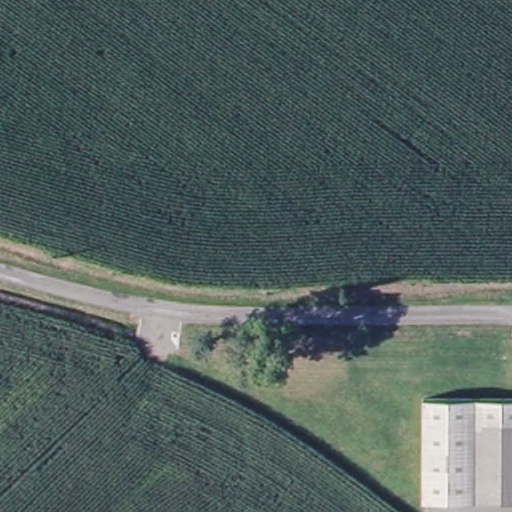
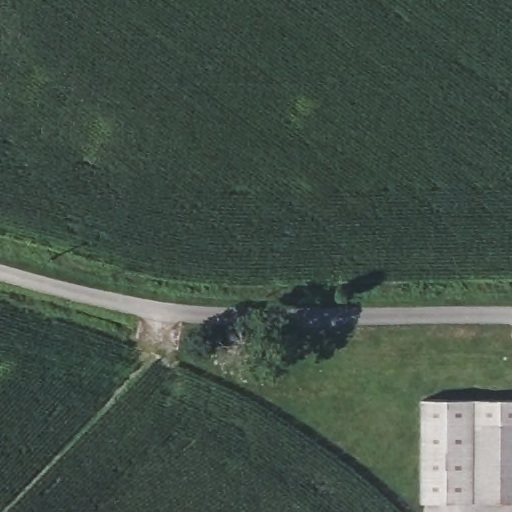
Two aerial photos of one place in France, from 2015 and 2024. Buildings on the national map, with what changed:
unchanged [(423,399),(512,398),(512,424),(479,423),(480,500),(423,501),(423,399)]
unchanged [(512,500),(480,500),(479,423),(512,424),(512,500)]

